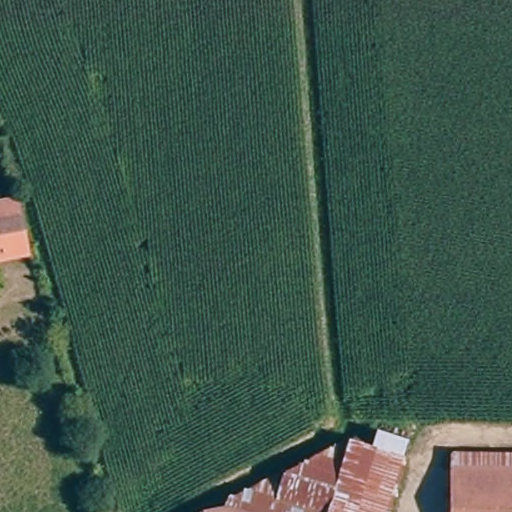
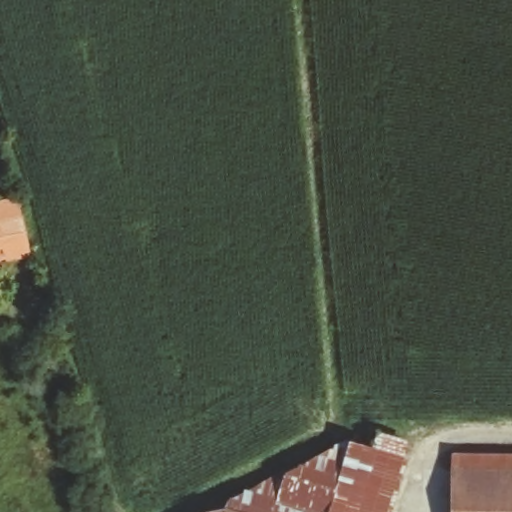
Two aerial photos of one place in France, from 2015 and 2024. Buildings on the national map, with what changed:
unchanged [(0,262),(0,197),(24,193),(36,255),(0,262)]
unchanged [(359,440),(385,448),(388,431),(414,441),(392,512),(337,512),(359,440)]
unchanged [(337,512),(219,512),(234,509),(237,501),(358,439),(337,512)]
unchanged [(453,468),(512,468),(512,512),(453,512),(453,468)]

